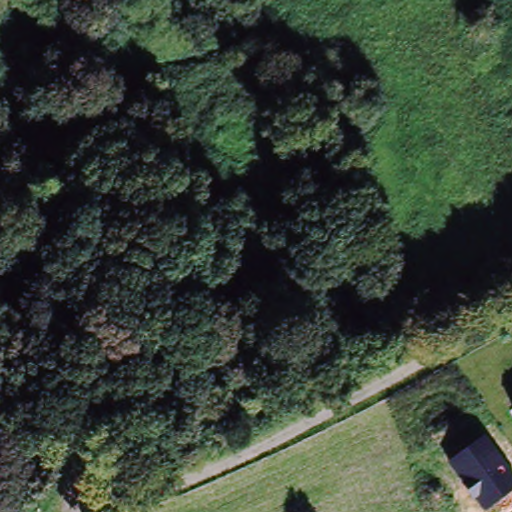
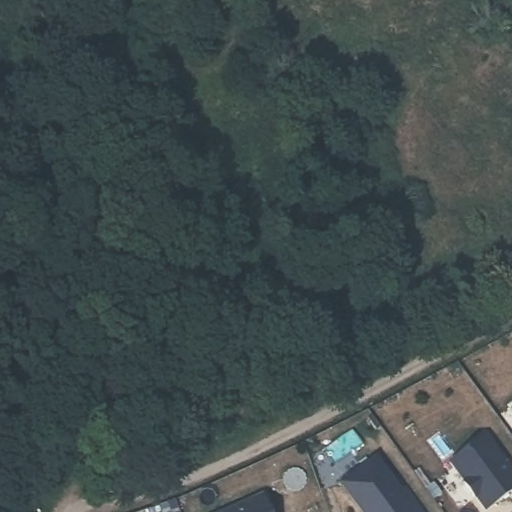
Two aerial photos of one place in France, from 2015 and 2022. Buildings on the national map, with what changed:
unchanged [(509,402),(512,400),(512,406),(509,402)]
unchanged [(486,512),(483,512),(448,461),(487,433),(512,468),(512,492),(486,512)]
new [(399,489),(406,497),(416,512),(361,512),(339,482),(376,456),(399,489)]
new [(262,495),(270,512),(224,512),(262,495)]

